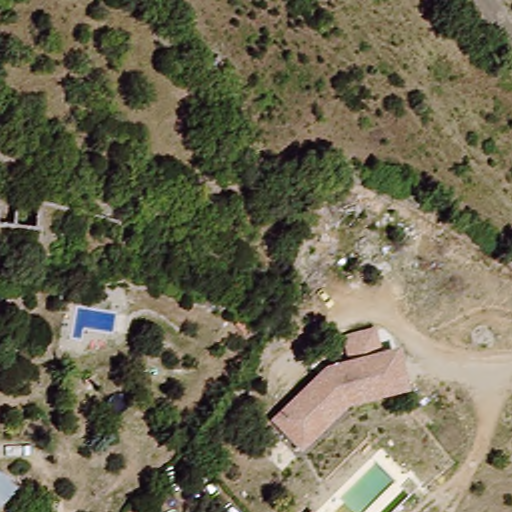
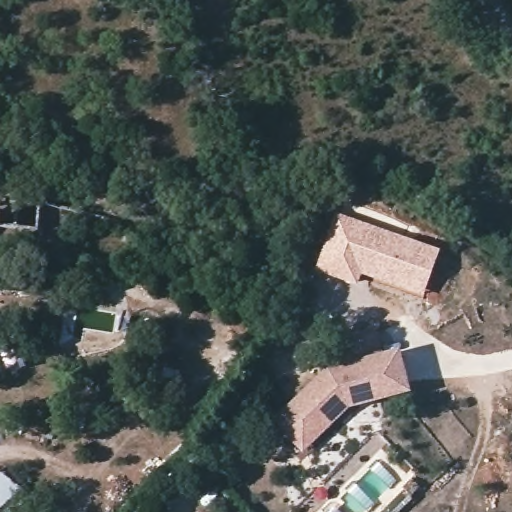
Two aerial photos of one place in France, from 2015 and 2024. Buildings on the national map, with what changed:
new [(338,214),(440,250),(422,298),(362,275),(356,287),(313,268),(338,214)]
unchanged [(323,367),(350,361),(343,338),(378,329),(382,352),(399,349),(409,390),(347,407),(301,450),(273,418),(323,367)]
unchanged [(0,511),(0,472),(20,488),(0,511)]

